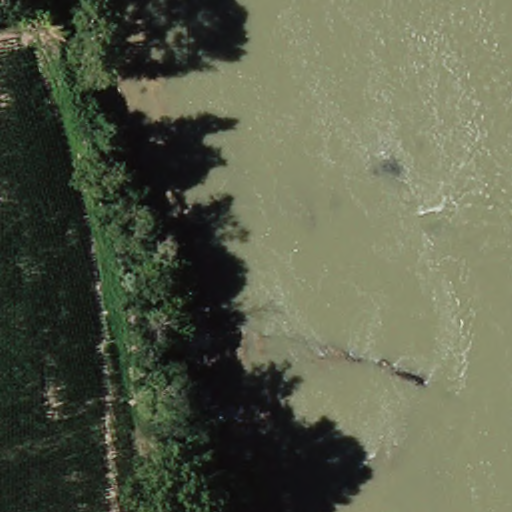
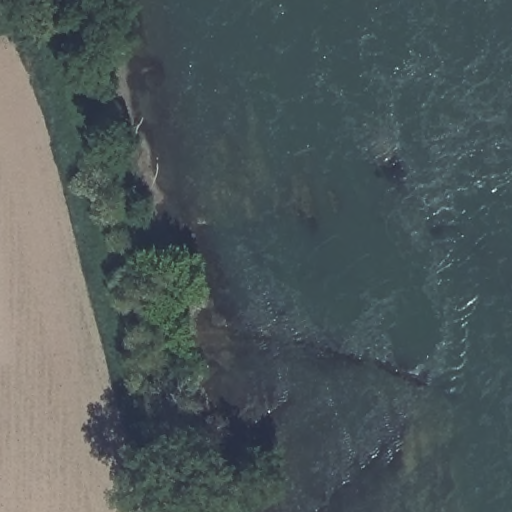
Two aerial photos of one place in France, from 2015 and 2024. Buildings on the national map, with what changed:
[]

